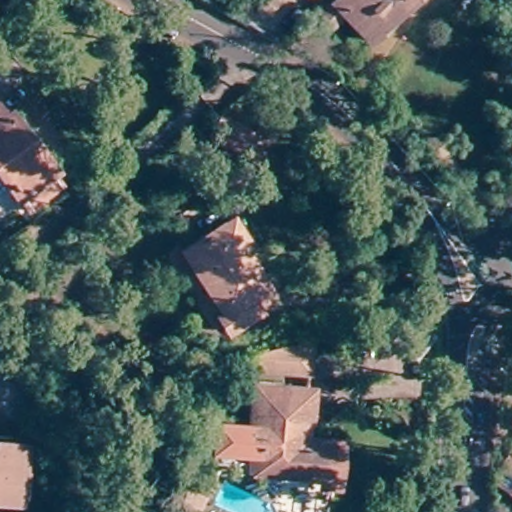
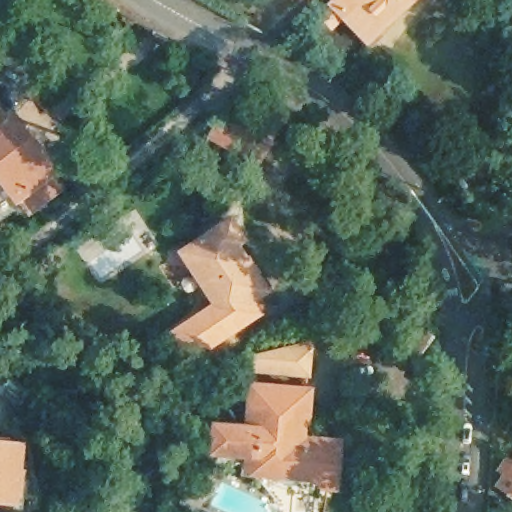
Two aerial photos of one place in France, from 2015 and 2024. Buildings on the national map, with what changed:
unchanged [(380,28),(382,31),(366,47),(340,19),(327,32),(319,24),(325,13),(339,0),(410,0),(380,28)]
unchanged [(7,118),(49,172),(16,198),(0,178),(0,118),(3,122),(7,118)]
unchanged [(254,137),(242,157),(211,139),(222,119),(254,137)]
unchanged [(229,334),(219,318),(223,316),(181,253),(220,228),(232,248),(236,246),(247,262),(254,273),(267,291),(250,302),(242,308),(250,319),(229,334)]
unchanged [(308,366),(255,361),(257,345),(258,334),(292,337),(311,339),(308,366)]
unchanged [(308,439),(344,449),(337,487),(242,477),(197,475),(205,430),(239,432),(240,387),(311,389),(308,439)]
unchanged [(10,451),(10,455),(22,456),(19,491),(18,498),(6,497),(5,507),(0,507),(0,439),(11,440),(10,451)]
unchanged [(507,496),(511,491),(501,485),(512,471),(501,463),(504,458),(500,455),(505,449),(508,452),(512,447),(512,500),(507,496)]

